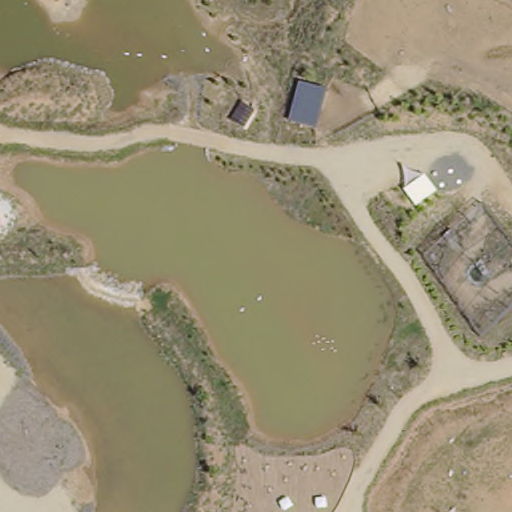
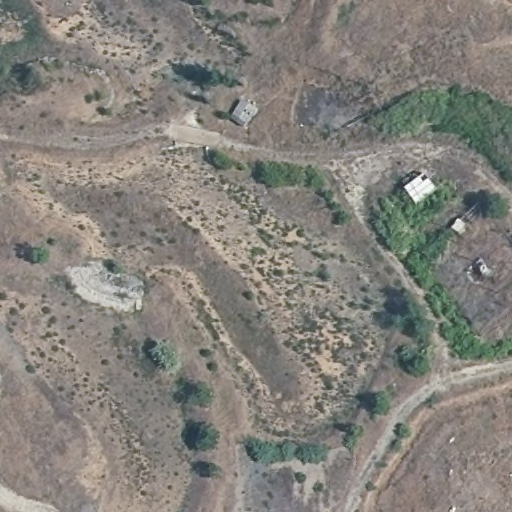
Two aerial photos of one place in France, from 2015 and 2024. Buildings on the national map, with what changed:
unchanged [(318,127),(289,121),(299,81),(327,89),(318,127)]

